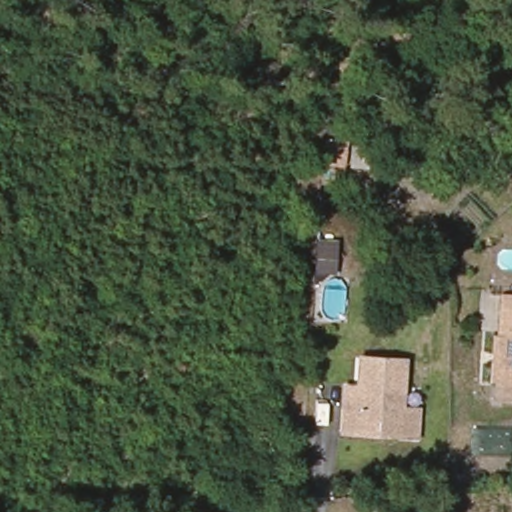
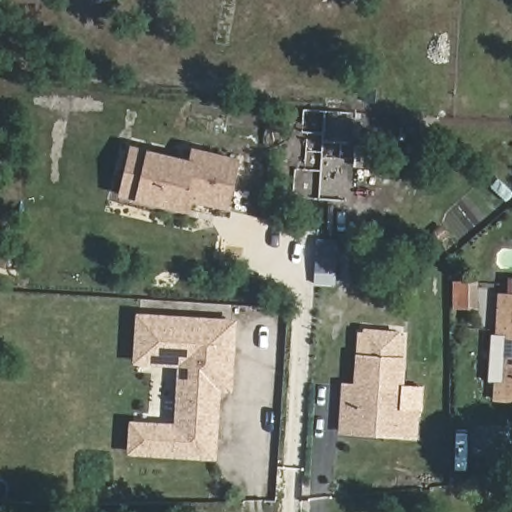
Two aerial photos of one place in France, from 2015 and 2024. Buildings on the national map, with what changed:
new [(356,160),(352,201),(292,197),(295,169),(305,169),(308,132),(302,132),(303,108),(358,111),(356,160)]
new [(229,209),(192,201),(189,213),(182,211),(134,199),(117,196),(129,144),(147,148),(189,158),(191,146),(241,157),(229,209)]
new [(314,284),(316,239),(337,239),(335,285),(314,284)]
new [(458,284),(478,284),(478,310),(458,310),(458,284)]
unchanged [(502,296),(512,297),(512,408),(497,407),(502,296)]
new [(221,390),(217,460),(127,455),(129,420),(174,422),(176,366),(132,364),(136,313),(237,319),(233,391),(221,390)]
new [(361,359),(356,358),(357,331),(363,331),(363,327),(401,330),(401,334),(407,335),(405,363),(361,359)]
unchanged [(358,389),(361,359),(405,363),(401,412),(417,413),(416,440),(342,434),(344,411),(346,388),(358,389)]

